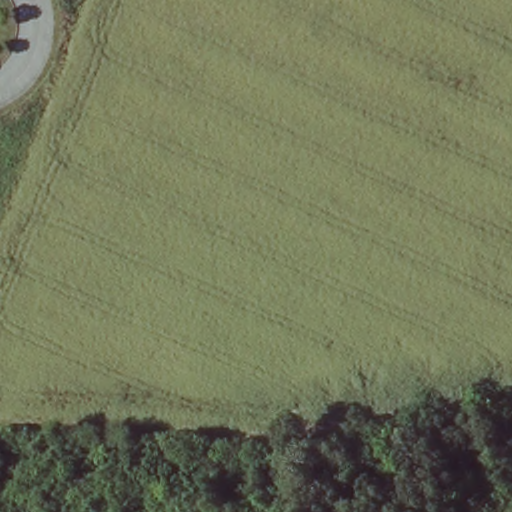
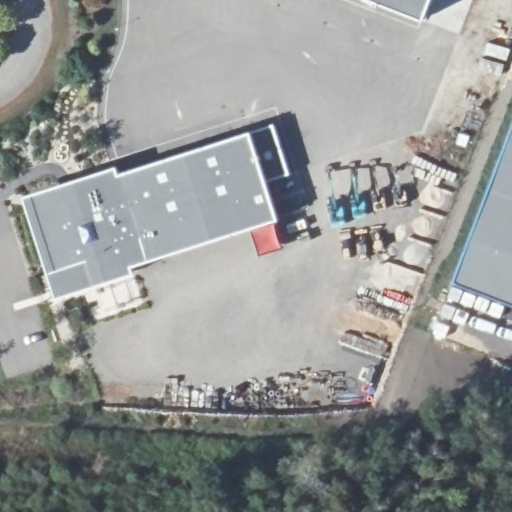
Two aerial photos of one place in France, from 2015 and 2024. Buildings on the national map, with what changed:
new [(371,0),(432,0),(424,20),(371,0)]
new [(117,166),(119,174),(250,131),(276,125),(293,175),(266,182),(278,221),(132,267),(133,274),(57,297),(25,199),(117,166)]
new [(512,132),(512,303),(455,279),(512,132)]

